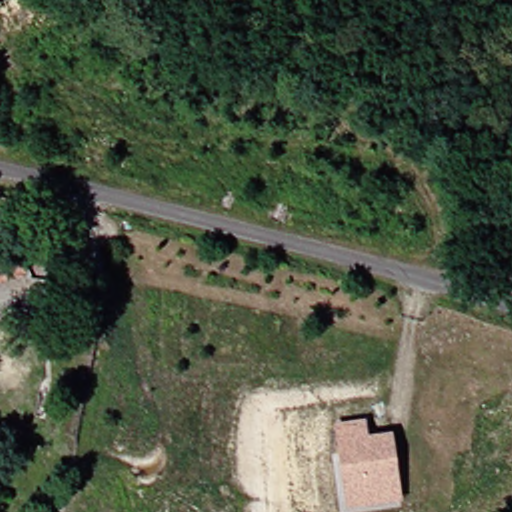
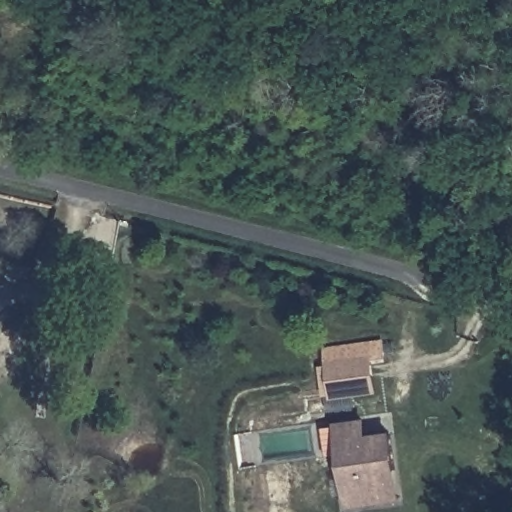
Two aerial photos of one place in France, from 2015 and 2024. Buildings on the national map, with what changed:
new [(326,381),(322,347),(384,339),(387,358),(373,360),(375,374),(326,381)]
unchanged [(366,417),(368,432),(395,428),(405,501),(346,512),(334,423),(366,417)]

